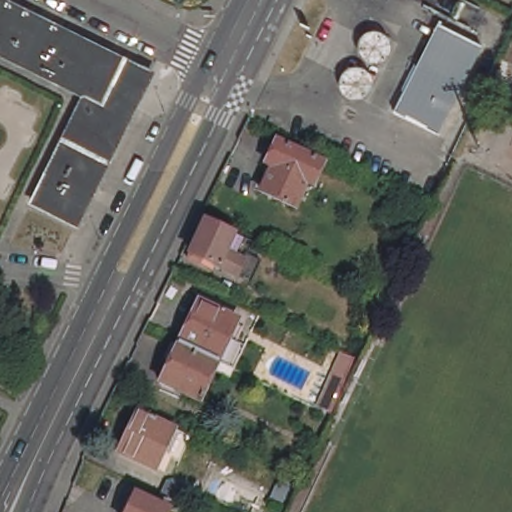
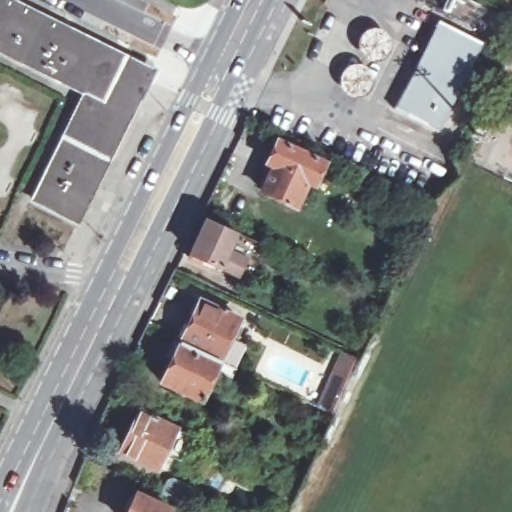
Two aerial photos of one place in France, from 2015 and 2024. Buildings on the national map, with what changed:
unchanged [(0,0),(15,0),(34,9),(48,16),(57,21),(64,24),(63,25),(120,54),(126,56),(127,56),(104,101),(85,92),(0,50),(0,0)]
unchanged [(438,131),(426,125),(407,115),(395,109),(405,89),(407,89),(439,27),(437,26),(440,20),(483,43),(438,131)]
unchanged [(505,57),(512,42),(512,60),(505,57)]
unchanged [(85,92),(104,101),(127,56),(153,70),(130,118),(109,159),(64,138),(85,92)]
unchanged [(80,223),(35,200),(64,138),(109,159),(99,181),(97,185),(94,191),(95,192),(87,207),(80,222),(80,223)]
unchanged [(325,162),(315,184),(308,181),(302,193),(301,197),(296,207),(263,191),(272,170),(274,166),(275,165),(267,162),(278,140),(325,162)]
unchanged [(226,232),(217,249),(236,258),(228,274),(210,266),(192,258),(190,263),(185,260),(187,255),(182,253),(197,218),(226,232)]
unchanged [(253,244),(259,247),(242,281),(228,274),(236,258),(217,249),(226,232),(253,244)]
unchanged [(380,310),(371,305),(375,297),(384,301),(380,310)]
unchanged [(195,312),(196,308),(200,299),(240,318),(232,337),(247,344),(236,368),(221,361),(180,342),(195,312)]
unchanged [(180,342),(221,361),(202,401),(161,382),(180,342)]
unchanged [(353,362),(350,369),(339,364),(342,357),(353,362)]
unchanged [(337,396),(330,411),(319,406),(327,391),(337,396)]
unchanged [(119,451),(127,433),(139,409),(150,414),(157,418),(177,427),(176,428),(167,447),(165,451),(157,468),(127,454),(120,451),(119,451)]
unchanged [(272,501),(277,489),(280,482),(296,489),(292,498),(287,508),(272,501)]
unchanged [(161,483),(189,496),(181,512),(180,512),(152,499),(161,483)]
unchanged [(132,498),(163,512),(125,512),(132,498)]

